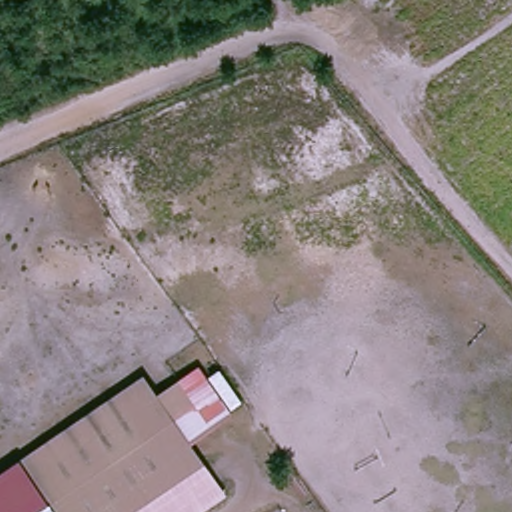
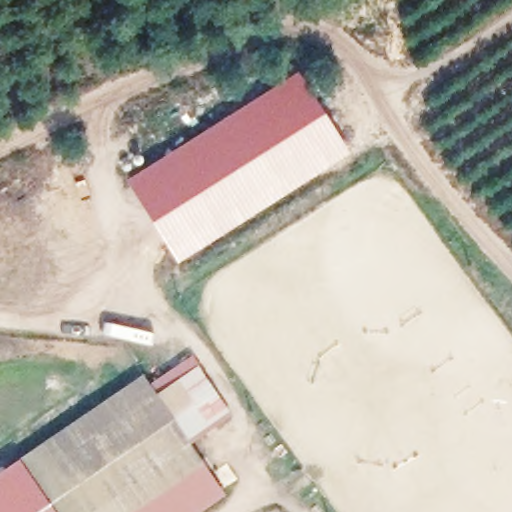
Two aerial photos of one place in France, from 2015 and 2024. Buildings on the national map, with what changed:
new [(176,257),(127,181),(299,69),(350,151),(176,257)]
unchanged [(198,365),(233,413),(210,429),(176,376),(198,365)]
unchanged [(138,372),(153,393),(176,376),(210,429),(187,446),(200,465),(132,512),(0,512),(0,467),(138,372)]
unchanged [(219,494),(195,512),(132,512),(200,465),(219,494)]

